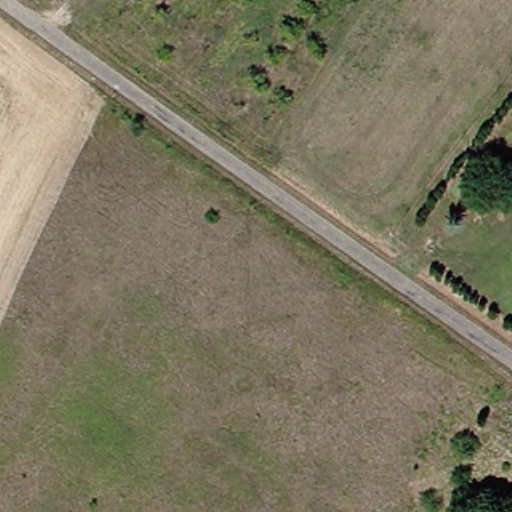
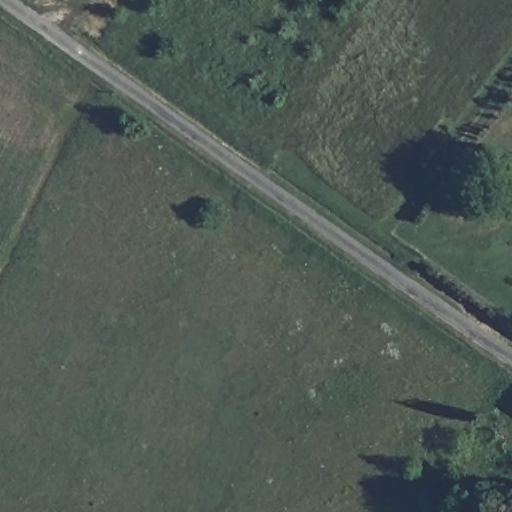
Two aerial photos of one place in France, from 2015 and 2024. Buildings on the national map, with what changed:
unchanged [(512,410),(512,413),(511,411),(512,410)]

